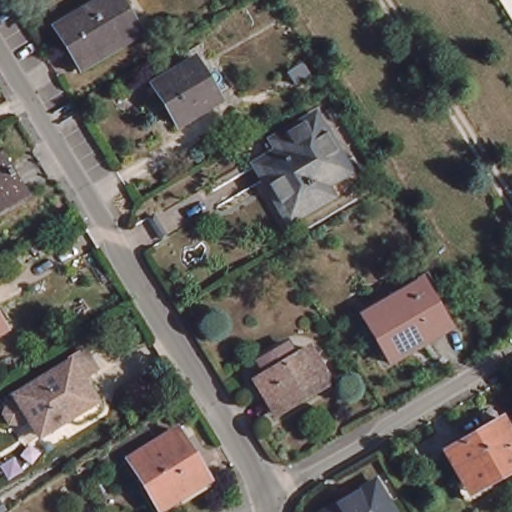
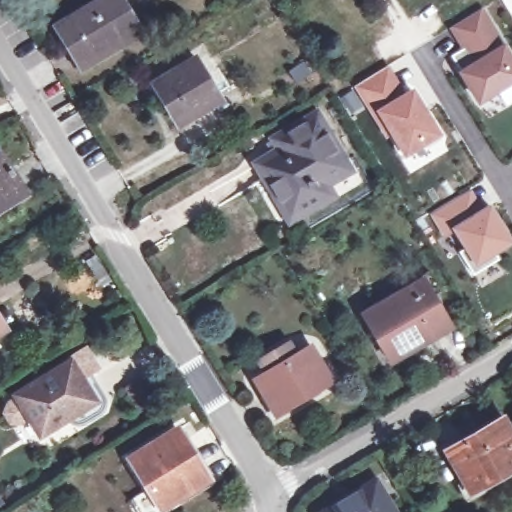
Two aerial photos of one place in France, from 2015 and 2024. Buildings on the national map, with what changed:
unchanged [(68,47),(58,31),(75,21),(72,17),(100,0),(122,0),(132,15),(141,29),(134,33),(138,40),(84,72),(68,47)]
new [(451,28),(480,11),(512,63),(512,82),(479,102),(451,57),(464,49),(451,28)]
unchanged [(196,58),(220,97),(176,123),(153,82),(196,58)]
new [(383,70),(396,91),(398,89),(403,97),(412,92),(438,135),(405,155),(392,133),(387,136),(356,86),(383,70)]
unchanged [(262,166),(287,151),(282,141),(325,116),(350,160),(357,171),(332,186),(339,196),(327,204),(297,222),(287,205),(272,181),(262,166)]
unchanged [(0,155),(14,176),(25,194),(13,201),(0,209),(0,155)]
new [(468,191),(480,212),(488,207),(510,244),(493,254),(497,260),(472,276),(457,253),(464,249),(452,231),(443,237),(430,215),(460,196),(468,191)]
unchanged [(384,353),(362,316),(423,280),(450,327),(430,340),(390,363),(384,353)]
unchanged [(4,331),(0,333),(0,325),(4,331)]
unchanged [(266,381),(258,368),(287,350),(295,362),(310,353),(330,387),(275,420),(255,387),(266,381)]
unchanged [(8,422),(12,411),(22,405),(21,402),(77,367),(101,407),(45,442),(35,424),(24,430),(13,429),(8,422)]
unchanged [(151,371),(166,395),(143,410),(128,386),(151,371)]
unchanged [(462,487),(467,483),(448,452),(505,420),(512,431),(512,471),(490,483),(493,488),(472,501),(462,487)]
unchanged [(177,430),(207,481),(160,510),(129,459),(177,430)]
unchanged [(375,482),(389,505),(393,512),(325,512),(375,482)]

